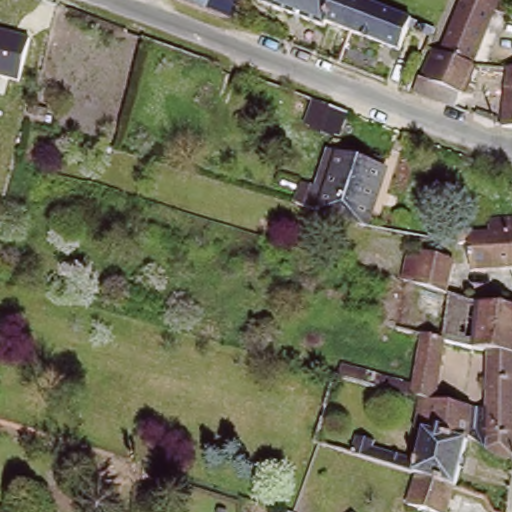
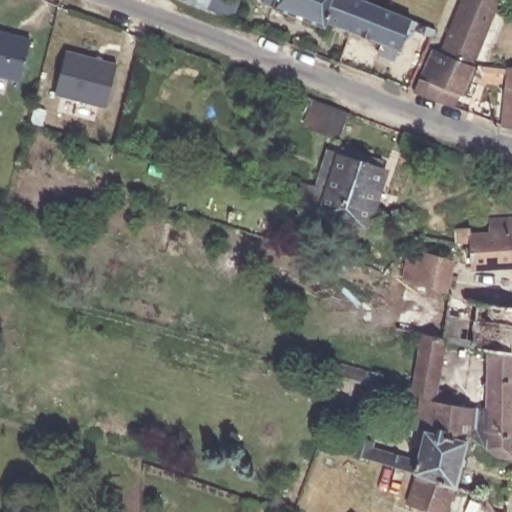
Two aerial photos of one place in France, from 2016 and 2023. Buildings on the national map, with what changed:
unchanged [(181,0),(239,0),(232,21),(181,0)]
unchanged [(439,23),(436,31),(413,24),(405,45),(331,17),(329,24),(275,4),(276,2),(272,0),(378,0),(439,23)]
unchanged [(504,7),(481,62),(450,50),(469,7),(459,2),(459,0),(507,0),(504,7)]
unchanged [(0,77),(0,30),(30,37),(18,82),(0,77)]
unchanged [(450,50),(481,62),(463,104),(423,89),(440,46),(450,50)]
new [(66,52),(117,65),(106,110),(55,97),(66,52)]
unchanged [(346,111),(337,135),(322,129),(330,105),(346,111)]
unchanged [(512,122),(512,117),(512,124),(511,124),(512,122)]
unchanged [(372,225),(330,212),(314,207),(320,187),(324,189),(338,150),(348,154),(390,167),(372,225)]
unchanged [(466,255),(466,252),(466,240),(480,240),(480,234),(500,232),(512,231),(512,279),(480,282),(478,256),(466,255)]
unchanged [(462,263),(457,288),(426,278),(433,247),(462,258),(462,263)]
unchanged [(481,350),(459,344),(453,341),(446,339),(457,288),(490,299),(512,302),(512,352),(481,350)]
unchanged [(431,335),(453,341),(445,388),(464,391),(464,402),(446,399),(427,395),(421,393),(431,335)]
unchanged [(476,438),(477,403),(496,407),(497,355),(481,352),(481,350),(512,352),(512,457),(505,456),(476,438)]
unchanged [(464,402),(477,403),(476,438),(459,485),(422,475),(353,455),(358,438),(381,445),(380,448),(419,459),(428,428),(418,426),(427,395),(446,399),(464,402)]
unchanged [(309,446),(311,438),(320,442),(317,448),(313,447),(309,446)]
unchanged [(334,445),(332,452),(324,450),(326,442),(334,445)]
unchanged [(451,512),(449,512),(416,503),(422,475),(459,485),(451,512)]

